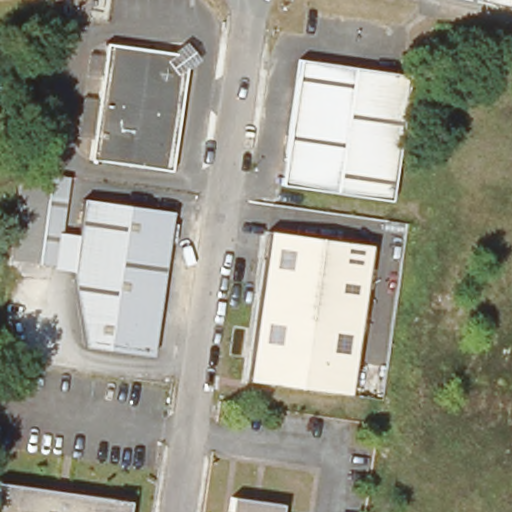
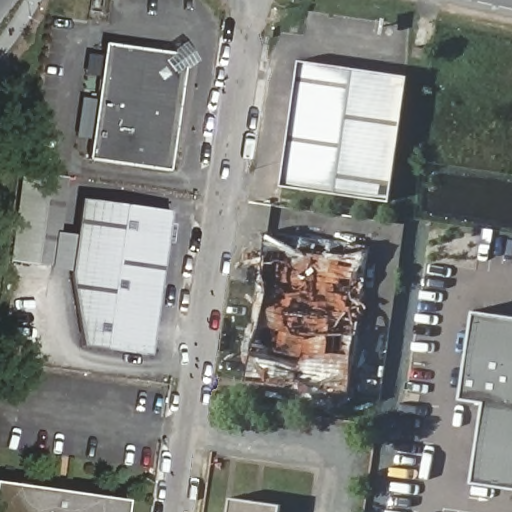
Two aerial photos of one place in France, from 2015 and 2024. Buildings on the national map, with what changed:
unchanged [(165,167),(84,156),(99,42),(165,49),(174,40),(186,55),(175,63),(177,66),(165,167)]
unchanged [(410,56),(412,44),(431,45),(430,58),(410,56)]
unchanged [(300,57),(405,71),(387,197),(282,181),(300,57)]
unchanged [(55,267),(10,261),(20,172),(65,177),(55,267)]
unchanged [(145,353),(80,346),(66,280),(75,205),(165,215),(145,353)]
unchanged [(348,394),(247,381),(268,231),(369,243),(348,394)]
new [(474,478),(485,398),(462,395),(475,306),(512,311),(512,484),(474,478)]
unchanged [(125,512),(0,512),(0,481),(126,500),(125,512)]
unchanged [(234,496),(286,504),(286,512),(232,512),(234,496)]

